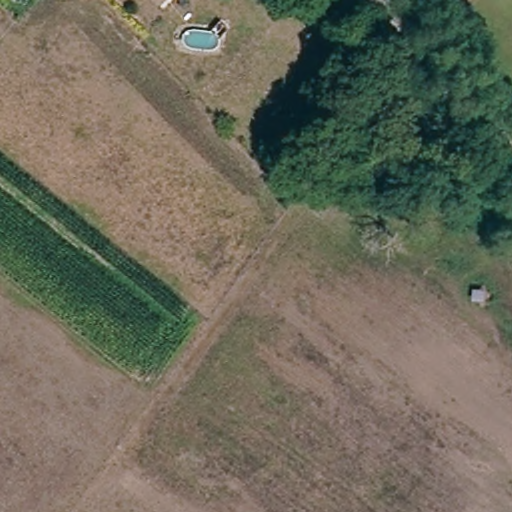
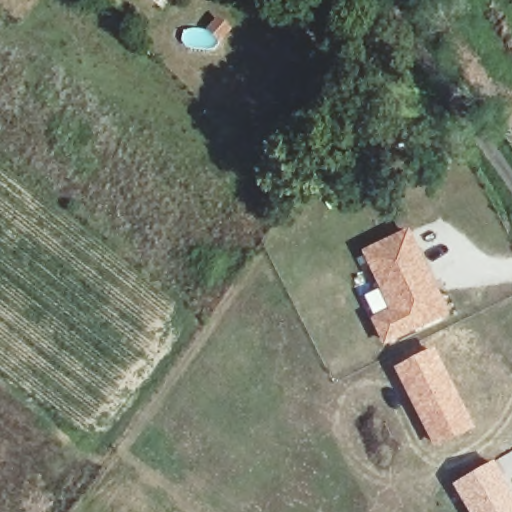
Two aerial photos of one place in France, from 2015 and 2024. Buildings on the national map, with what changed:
unchanged [(167,0),(160,8),(151,0),(167,0)]
new [(450,314),(384,346),(371,317),(390,309),(361,249),(410,227),(450,314)]
new [(434,347),(475,428),(434,449),(393,367),(434,347)]
new [(494,460),(512,493),(512,512),(468,512),(451,484),(494,460)]

